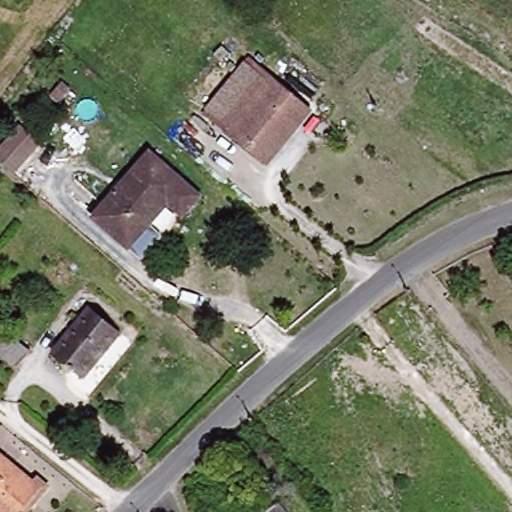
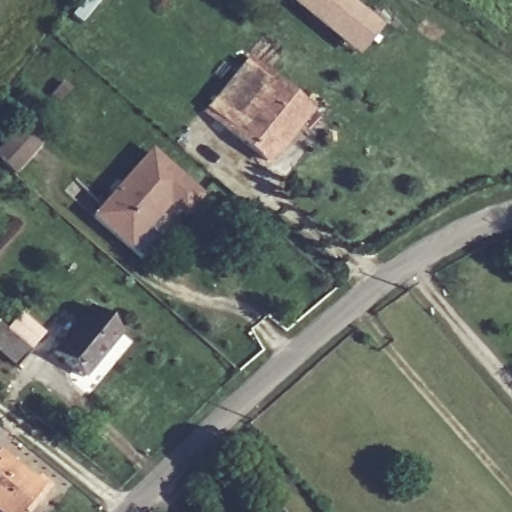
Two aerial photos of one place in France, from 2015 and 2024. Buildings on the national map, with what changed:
new [(287,1),(288,0),(347,0),(379,26),(354,55),(287,1)]
unchanged [(256,52),(316,101),(270,159),(210,110),(256,52)]
unchanged [(47,145),(18,176),(0,159),(0,150),(22,126),(47,145)]
unchanged [(142,261),(131,251),(93,214),(152,146),(206,194),(187,219),(172,206),(155,225),(166,236),(142,261)]
unchanged [(86,373),(56,348),(95,304),(124,330),(86,373)]
unchanged [(22,375),(0,357),(0,334),(2,332),(9,338),(36,360),(22,375)]
unchanged [(15,512),(5,512),(0,508),(0,451),(36,481),(41,475),(47,483),(30,503),(26,500),(15,512)]

